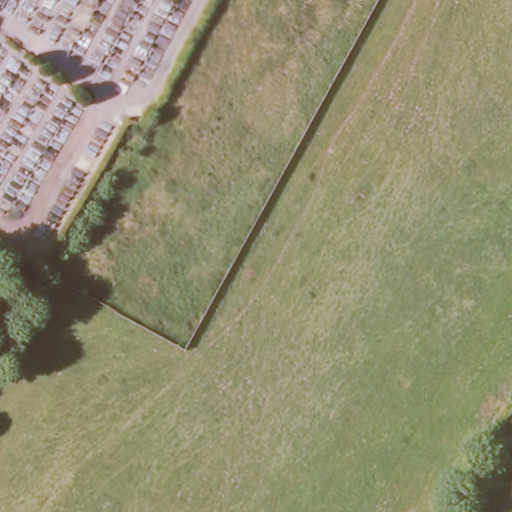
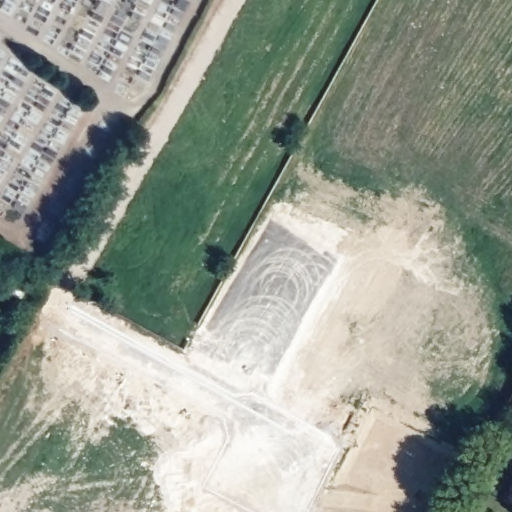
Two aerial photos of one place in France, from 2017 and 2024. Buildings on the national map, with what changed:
unchanged [(507,431),(499,446),(482,437),(490,421),(507,431)]

